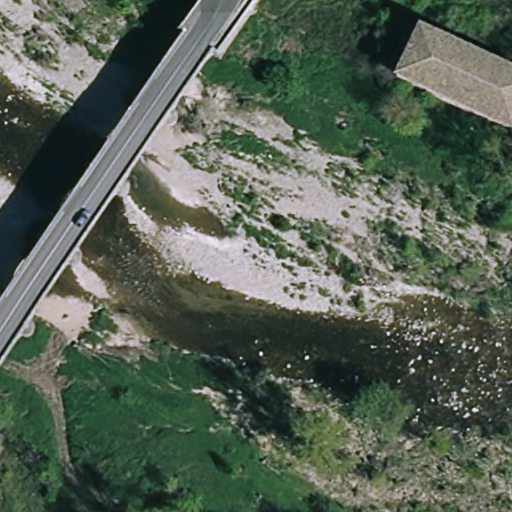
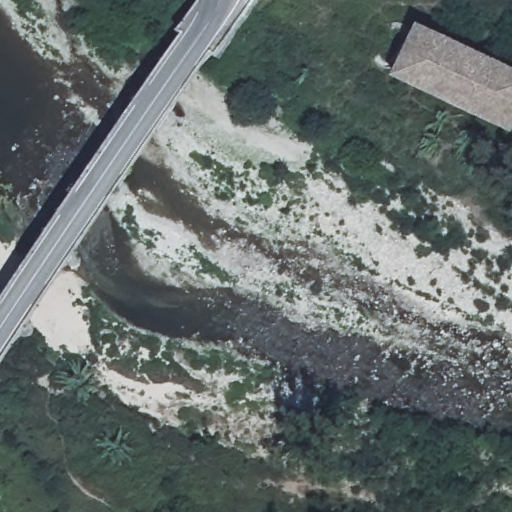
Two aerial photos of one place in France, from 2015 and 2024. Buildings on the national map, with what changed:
unchanged [(425,24),(512,65),(512,132),(399,79),(425,24)]

